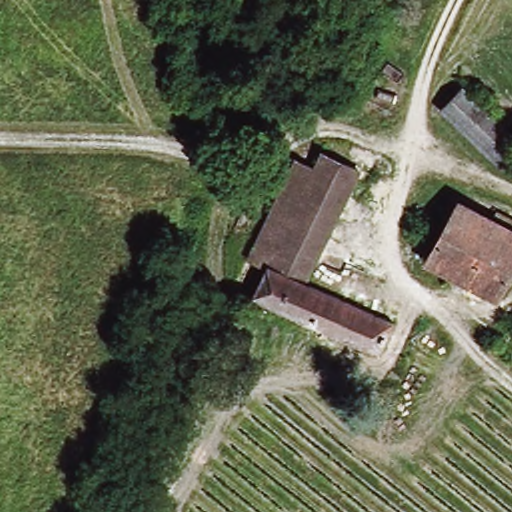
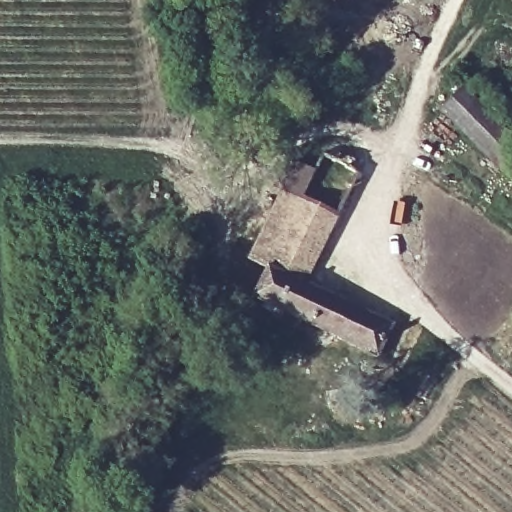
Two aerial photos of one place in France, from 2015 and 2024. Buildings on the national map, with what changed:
unchanged [(512,139),(512,166),(507,170),(433,101),(451,82),(512,139)]
unchanged [(302,277),(394,321),(377,355),(252,295),(266,265),(239,253),(283,163),(305,174),(315,151),(354,170),(329,222),(302,277)]
demolished [(512,222),(512,277),(501,300),(428,265),(459,205),(493,221),(496,215),(512,222)]

